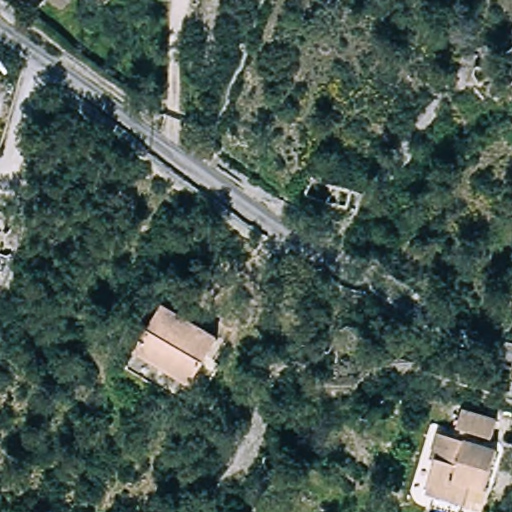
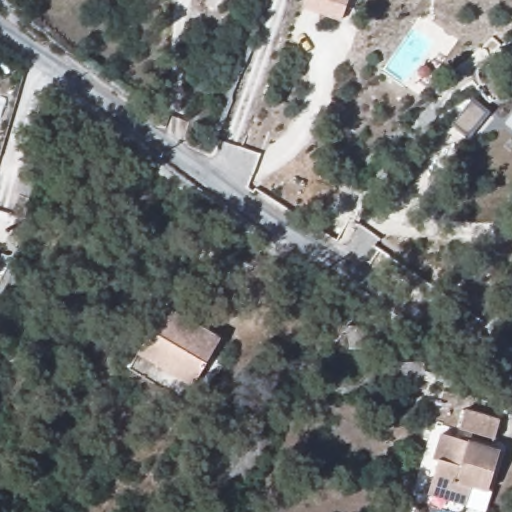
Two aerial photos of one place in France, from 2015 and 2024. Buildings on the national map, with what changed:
new [(344,16),(321,8),(306,3),(306,0),(349,0),(344,16)]
unchanged [(215,363),(221,367),(214,379),(200,371),(189,389),(133,354),(159,310),(216,345),(223,349),(215,363)]
unchanged [(493,415),(488,433),(453,423),(459,405),(493,415)]
unchanged [(493,448),(480,491),(464,486),(459,504),(423,493),(432,462),(425,459),(434,430),(493,448)]

